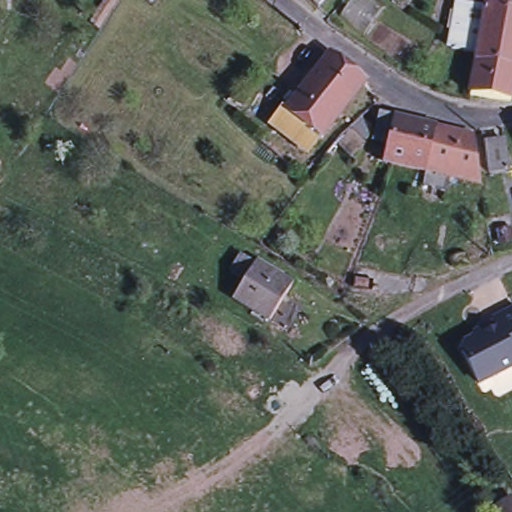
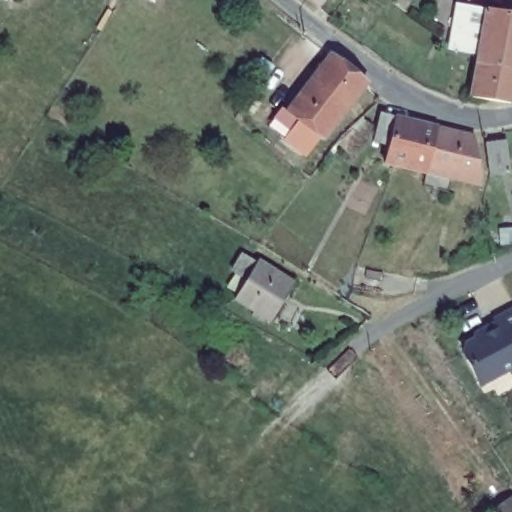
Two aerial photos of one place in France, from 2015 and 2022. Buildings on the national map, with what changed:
unchanged [(312,0),(324,0),(318,6),(312,0)]
unchanged [(487,7),(478,53),(451,49),(461,3),(487,7)]
unchanged [(512,12),(512,94),(510,103),(470,95),(478,53),(487,7),(512,12)]
unchanged [(270,122),(282,107),(286,111),(330,53),(366,81),(322,139),(319,136),(307,151),(270,122)]
unchanged [(441,132),(432,175),(388,165),(393,147),(376,144),(384,118),(399,121),(408,124),(441,132)]
unchanged [(478,140),(485,186),(432,175),(441,132),(478,140)]
unchanged [(508,146),(512,172),(512,176),(494,179),(489,148),(508,146)]
unchanged [(490,220),(490,216),(511,213),(512,218),(512,244),(497,247),(495,236),(490,237),(487,221),(490,220)]
unchanged [(292,283),(270,320),(235,298),(256,262),(292,283)]
unchanged [(492,326),(489,320),(512,307),(512,364),(475,383),(458,351),(460,343),(492,326)]
unchanged [(511,497),(512,498),(512,512),(495,512),(492,509),(511,497)]

